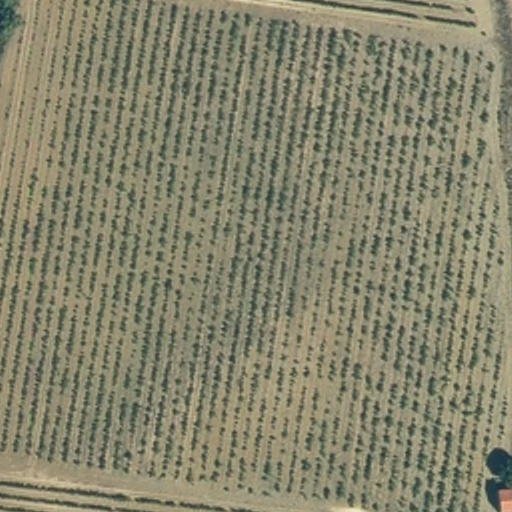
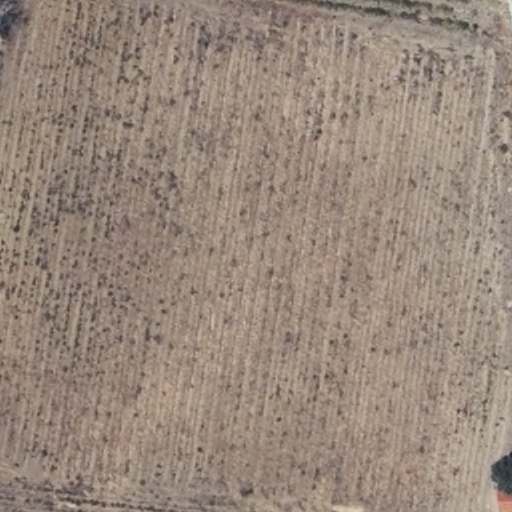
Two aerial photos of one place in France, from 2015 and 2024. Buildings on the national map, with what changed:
unchanged [(512,503),(500,503),(500,485),(512,485),(512,503)]

